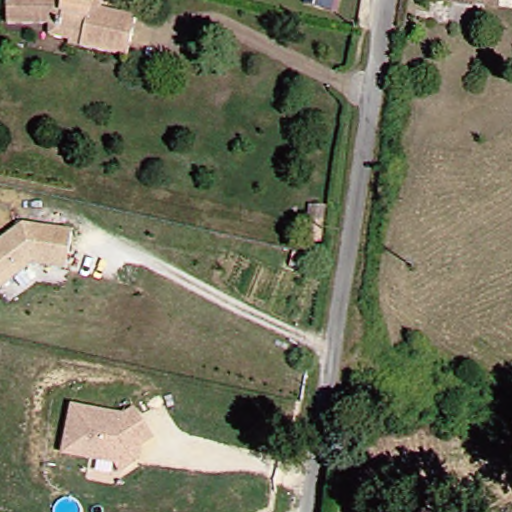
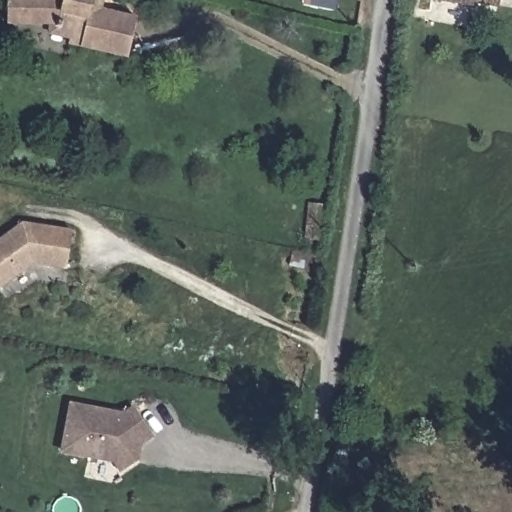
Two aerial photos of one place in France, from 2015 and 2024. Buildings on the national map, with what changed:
unchanged [(66,26),(51,23),(51,18),(0,16),(0,8),(1,0),(93,0),(130,10),(123,51),(64,37),(66,26)]
unchanged [(337,11),(303,3),(304,0),(339,0),(337,11)]
unchanged [(468,1),(421,3),(421,0),(493,0),(493,7),(468,1)]
unchanged [(251,158),(237,155),(241,138),(256,142),(251,158)]
unchanged [(73,230),(66,268),(34,262),(0,285),(0,238),(24,221),(73,230)]
unchanged [(123,412),(131,407),(150,435),(131,448),(136,457),(119,468),(113,459),(61,449),(70,402),(123,412)]

